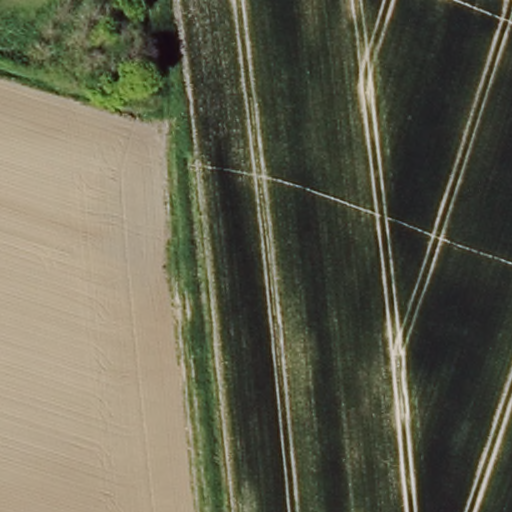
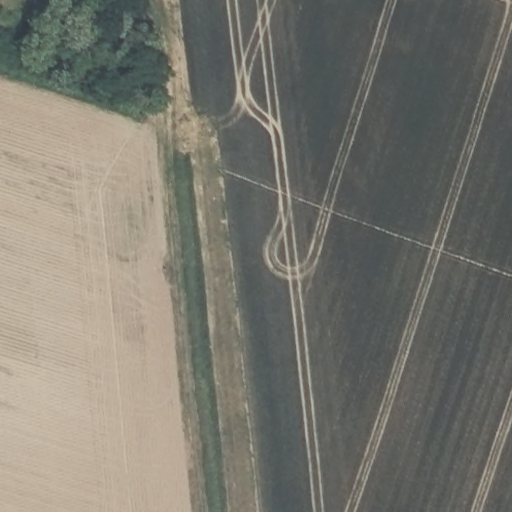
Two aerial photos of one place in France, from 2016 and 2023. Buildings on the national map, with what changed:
[]

